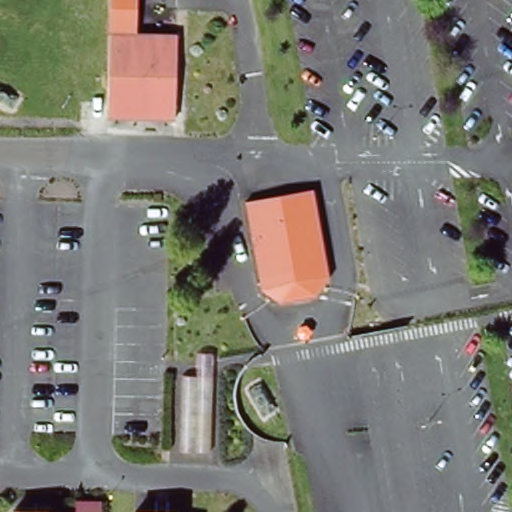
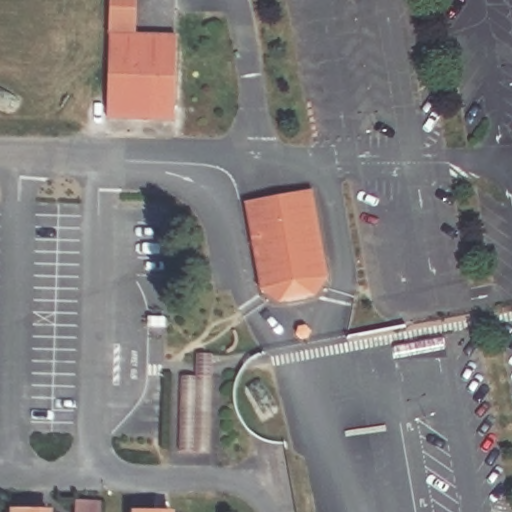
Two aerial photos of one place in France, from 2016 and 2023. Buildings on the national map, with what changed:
unchanged [(132,36),(172,35),(173,119),(107,120),(104,0),(131,0),(132,36)]
unchanged [(313,297),(275,303),(258,288),(242,199),(313,187),(327,275),(313,297)]
unchanged [(217,380),(210,454),(181,451),(185,379),(217,380)]
unchanged [(170,493),(170,512),(128,512),(129,492),(170,493)]
unchanged [(58,505),(58,512),(14,512),(14,505),(58,505)]

